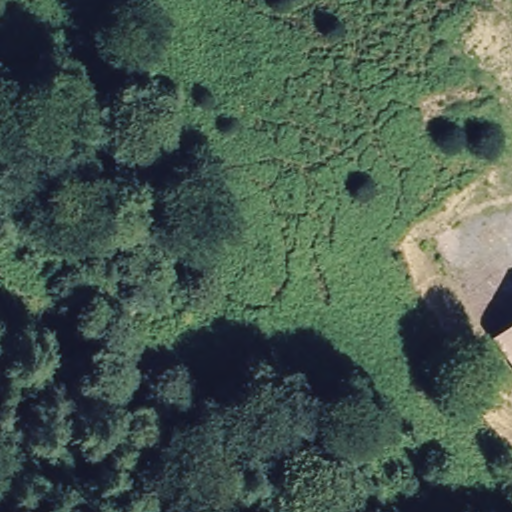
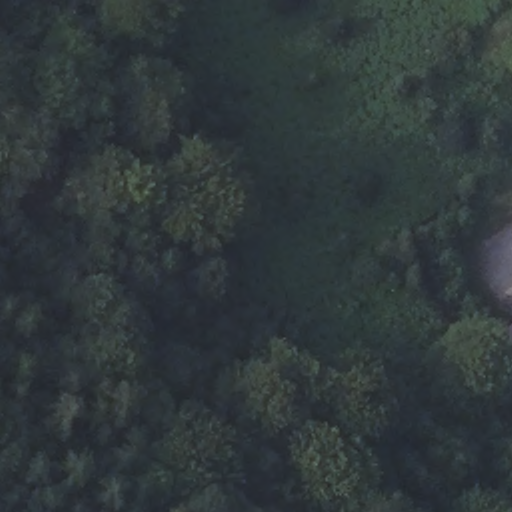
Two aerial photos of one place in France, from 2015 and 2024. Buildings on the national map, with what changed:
unchanged [(512,327),(512,359),(497,338),(512,327)]

